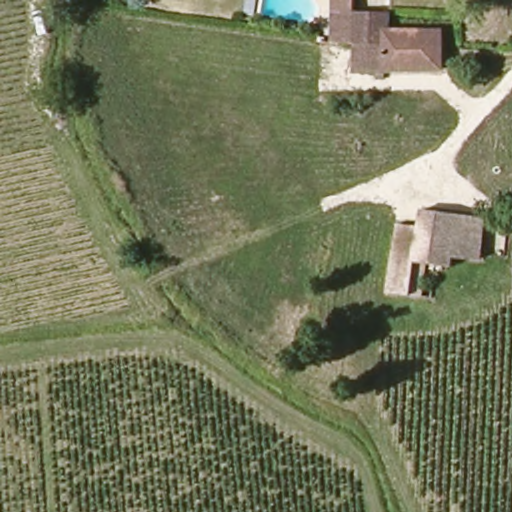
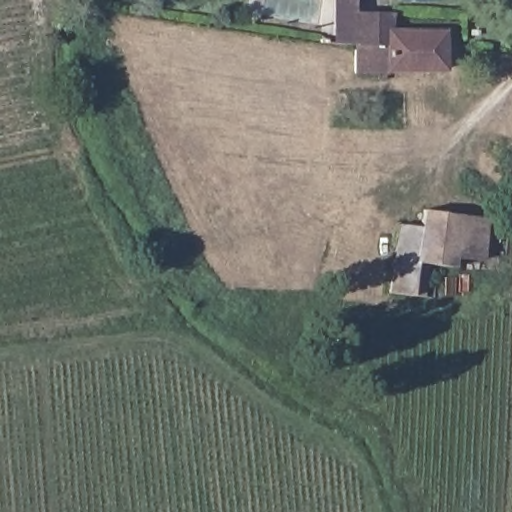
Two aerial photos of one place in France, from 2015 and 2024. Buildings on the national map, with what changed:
unchanged [(355,49),(325,45),(331,0),(343,0),(360,0),(360,2),(395,6),(395,16),(394,32),(392,76),(352,75),(355,49)]
unchanged [(394,32),(443,36),(441,78),(392,76),(394,32)]
unchanged [(393,296),(396,220),(419,222),(420,210),(455,213),(453,260),(452,267),(420,265),(417,298),(393,296)]
unchanged [(485,217),(483,261),(453,260),(455,213),(485,217)]
unchanged [(420,265),(452,267),(450,300),(417,298),(420,265)]

